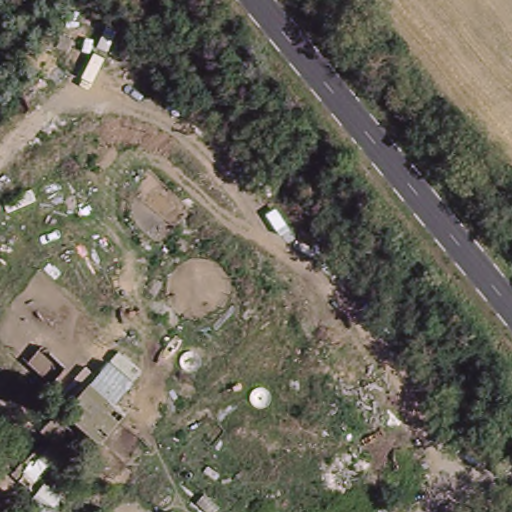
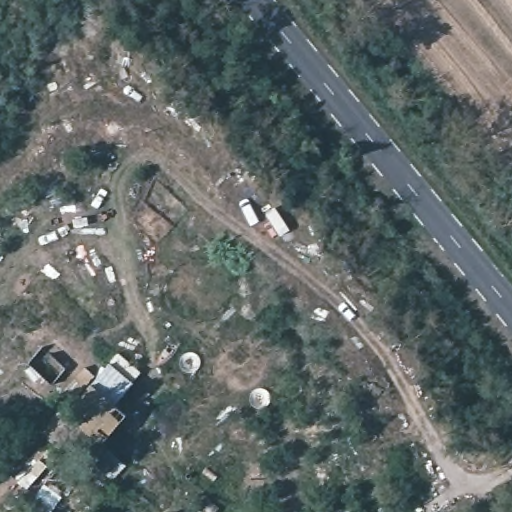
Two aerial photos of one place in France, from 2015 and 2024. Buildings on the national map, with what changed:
unchanged [(128,377),(113,398),(123,410),(99,441),(63,410),(105,357),(128,377)]

